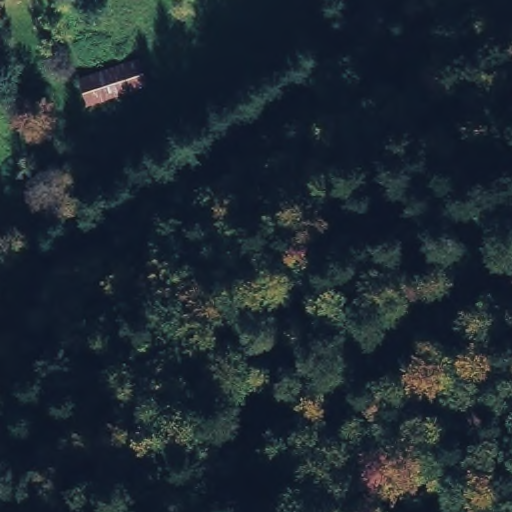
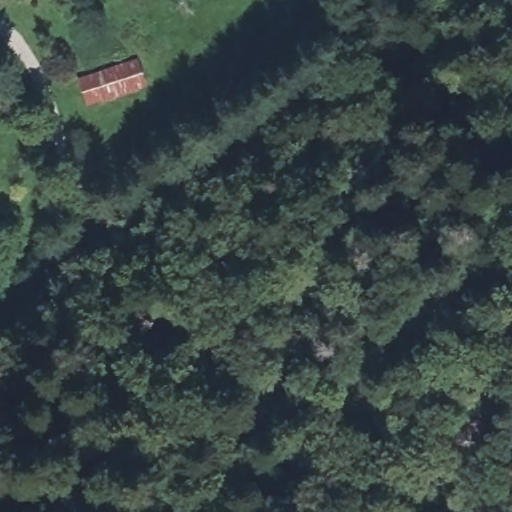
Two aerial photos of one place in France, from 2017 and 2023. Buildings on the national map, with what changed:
unchanged [(145,87),(84,105),(75,77),(135,59),(145,87)]

